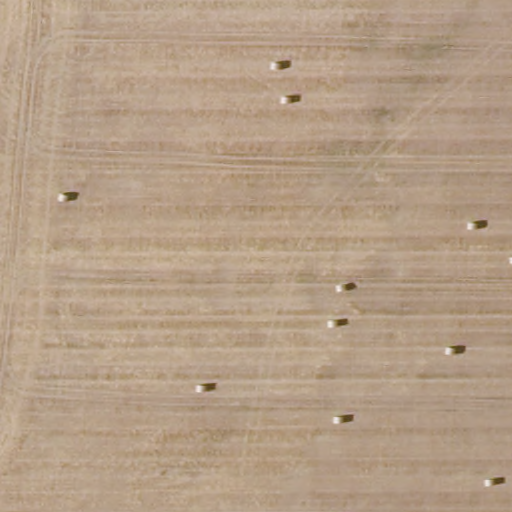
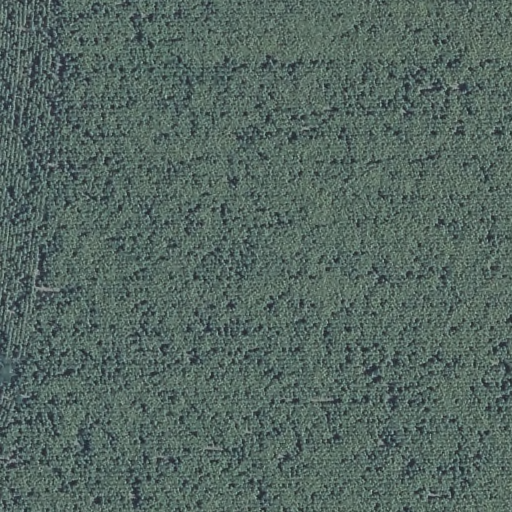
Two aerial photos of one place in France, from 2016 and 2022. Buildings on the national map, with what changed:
[]

